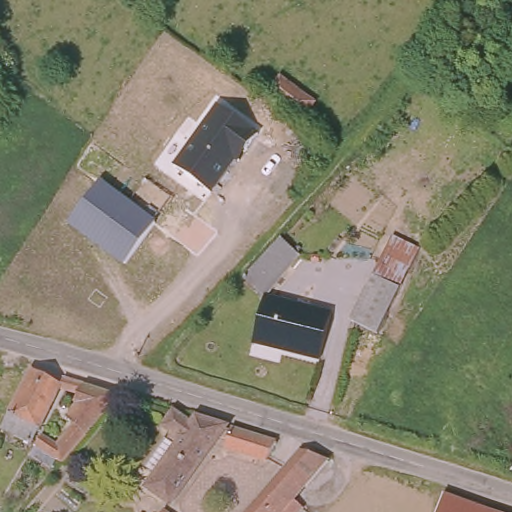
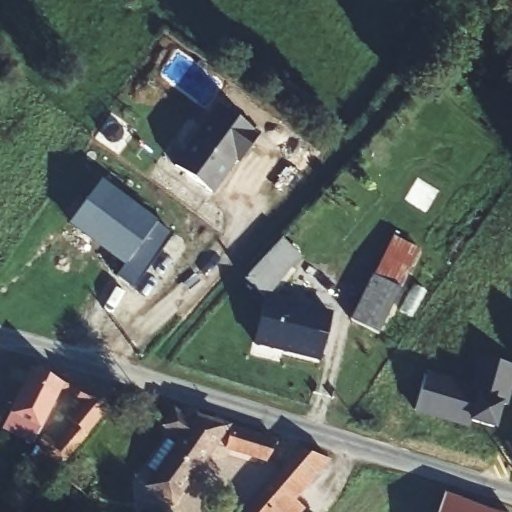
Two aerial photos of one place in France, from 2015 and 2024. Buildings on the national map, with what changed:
unchanged [(319,104),(297,131),(259,100),(280,73),(319,104)]
unchanged [(219,101),(262,131),(241,165),(234,161),(210,195),(174,166),(219,101)]
unchanged [(100,179),(155,222),(122,267),(66,225),(100,179)]
unchanged [(266,297),(242,276),(279,236),(303,257),(266,297)]
unchanged [(394,243),(420,257),(398,294),(372,279),(394,243)]
unchanged [(347,324),(372,279),(398,294),(373,338),(347,324)]
unchanged [(331,317),(318,359),(252,339),(266,297),(331,317)]
new [(425,374),(470,387),(479,356),(512,365),(512,376),(503,404),(498,403),(491,426),(463,418),(461,424),(414,409),(425,374)]
unchanged [(107,414),(60,466),(50,458),(44,466),(34,459),(39,451),(28,444),(30,439),(1,425),(30,370),(60,386),(62,377),(122,398),(107,414)]
unchanged [(274,463),(232,451),(234,444),(220,440),(169,512),(165,512),(161,509),(145,498),(147,494),(177,451),(177,449),(167,444),(174,433),(172,431),(167,427),(176,412),(195,424),(200,418),(229,426),(280,440),(274,463)]
unchanged [(330,469),(295,512),(241,512),(298,442),(330,469)]
unchanged [(444,496),(493,512),(438,512),(444,496)]

